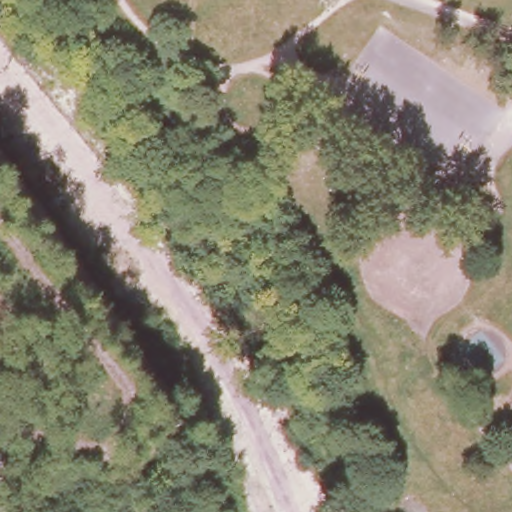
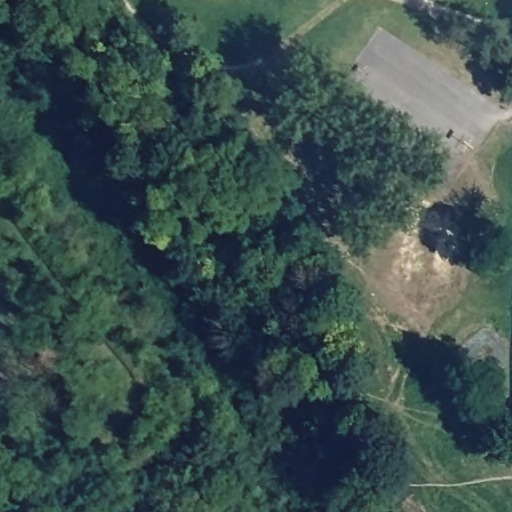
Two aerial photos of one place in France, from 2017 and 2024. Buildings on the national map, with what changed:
[]

